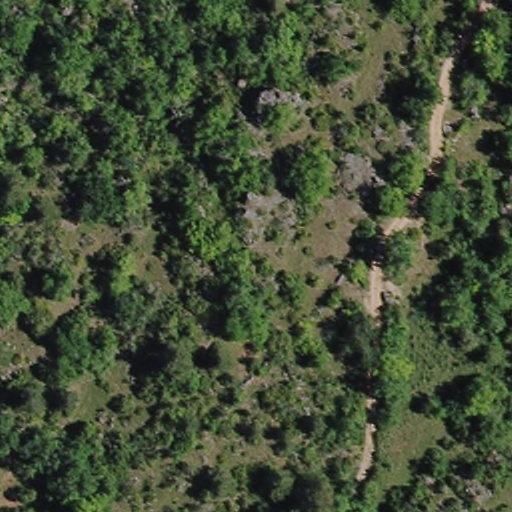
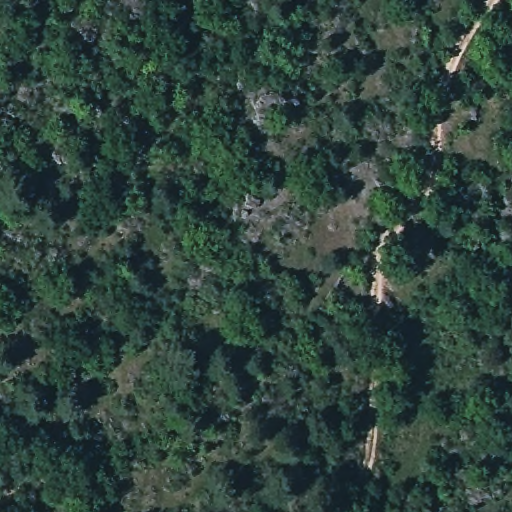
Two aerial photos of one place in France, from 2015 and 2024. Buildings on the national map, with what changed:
[]

